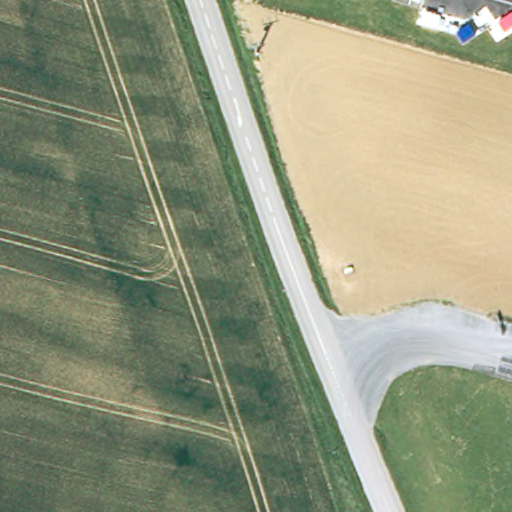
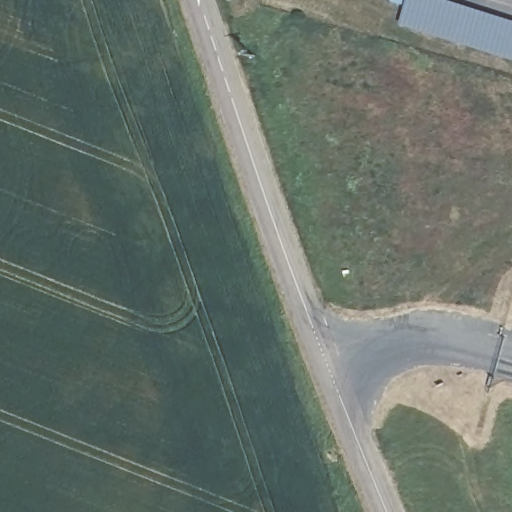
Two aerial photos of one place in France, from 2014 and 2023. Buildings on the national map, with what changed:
new [(449,0),(512,20),(512,59),(402,24),(410,0),(449,0)]

